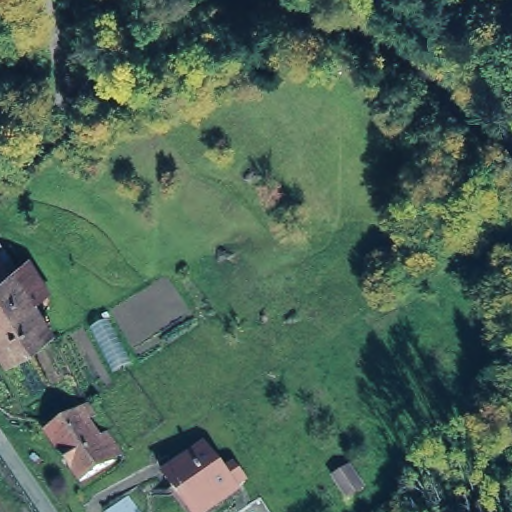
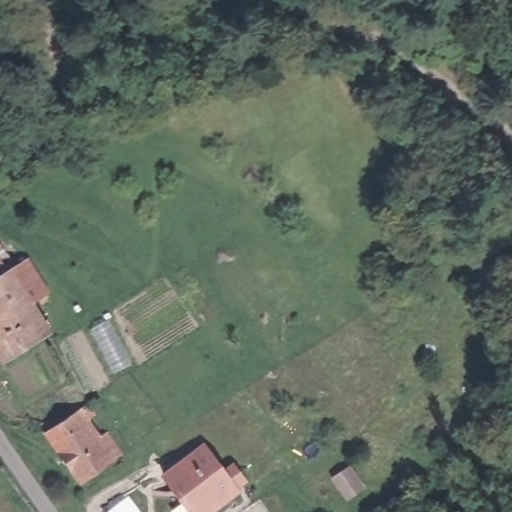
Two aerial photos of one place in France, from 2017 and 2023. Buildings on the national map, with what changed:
unchanged [(22,262),(41,292),(27,303),(43,331),(0,356),(0,275),(22,262)]
unchanged [(81,407),(90,420),(82,425),(93,442),(102,435),(118,457),(77,488),(41,435),(51,428),(81,407)]
unchanged [(238,467),(250,482),(241,491),(242,493),(217,512),(193,512),(170,481),(210,451),(227,475),(238,467)]
unchanged [(331,475),(337,472),(348,463),(362,482),(350,493),(348,495),(331,475)]
unchanged [(140,510),(137,512),(109,512),(128,496),(140,510)]

